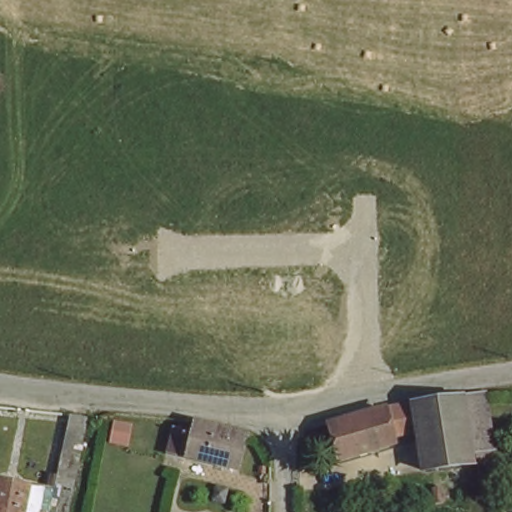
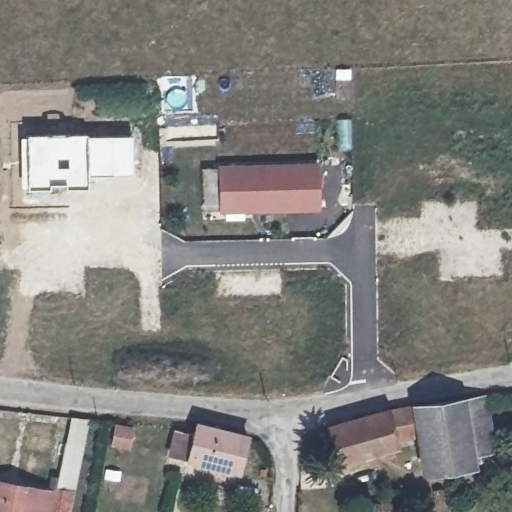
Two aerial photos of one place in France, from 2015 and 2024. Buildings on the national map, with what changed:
new [(85,134),(88,177),(89,189),(22,192),(18,135),(85,134)]
new [(133,134),(134,175),(88,177),(85,134),(133,134)]
new [(217,165),(317,162),(318,211),(218,213),(217,165)]
unchanged [(482,393),(492,443),(470,447),(460,397),(482,393)]
unchanged [(365,411),(403,403),(442,398),(460,397),(470,447),(473,461),(427,467),(419,433),(390,438),(390,443),(337,452),(327,420),(365,411)]
new [(71,420),(88,423),(73,492),(57,491),(71,420)]
unchanged [(187,457),(196,422),(247,435),(245,443),(238,470),(187,457)]
unchanged [(55,495),(52,512),(0,512),(0,506),(5,483),(55,495)]
unchanged [(192,511),(192,512),(173,512),(174,508),(192,511)]

